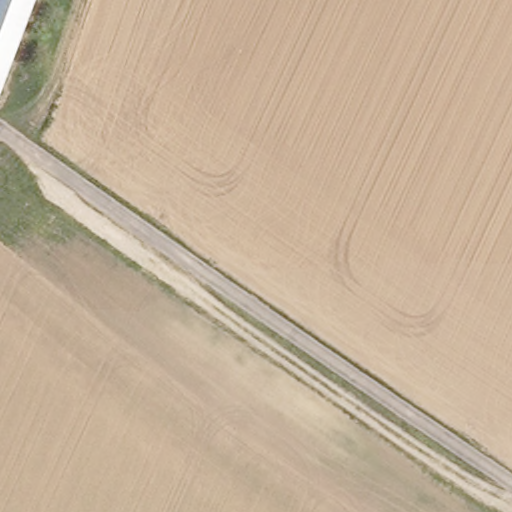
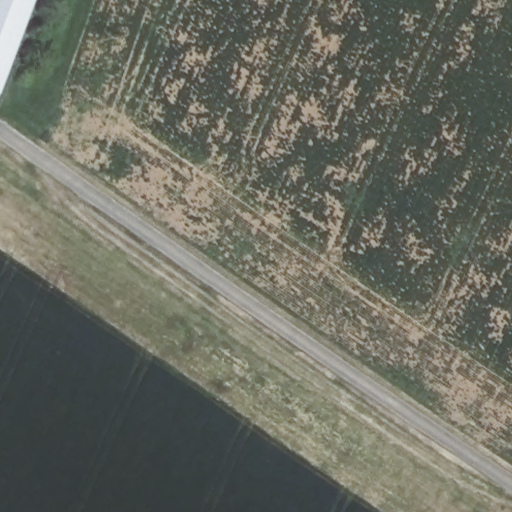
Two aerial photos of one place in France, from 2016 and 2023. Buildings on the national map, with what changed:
unchanged [(0,0),(30,0),(0,82),(0,0)]

